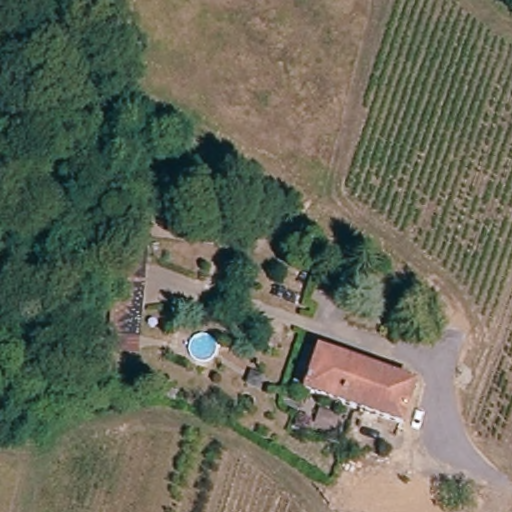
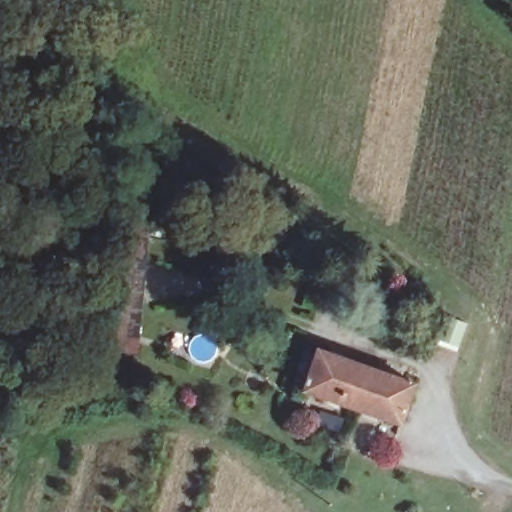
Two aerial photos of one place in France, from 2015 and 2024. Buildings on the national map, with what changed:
unchanged [(110,74),(114,94),(100,97),(95,78),(110,74)]
unchanged [(137,220),(136,235),(151,237),(151,245),(160,245),(159,255),(150,254),(140,342),(110,340),(122,219),(137,220)]
unchanged [(317,355),(408,387),(395,428),(305,393),(317,355)]

